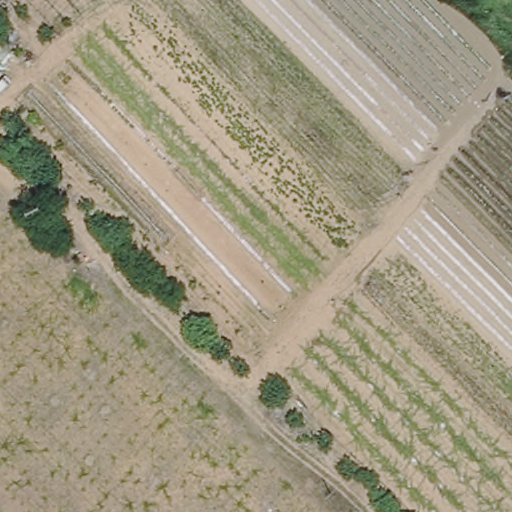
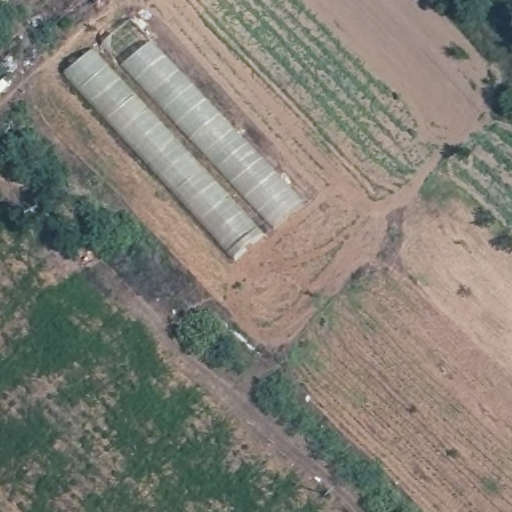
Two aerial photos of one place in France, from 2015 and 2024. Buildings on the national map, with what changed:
demolished [(7,0),(12,4),(0,15),(0,0),(7,0)]
new [(233,264),(62,78),(131,15),(301,201),(233,264)]
demolished [(23,54),(2,74),(0,72),(0,33),(23,54)]

